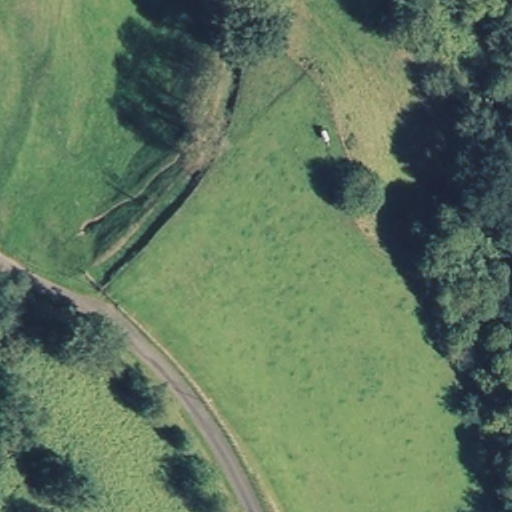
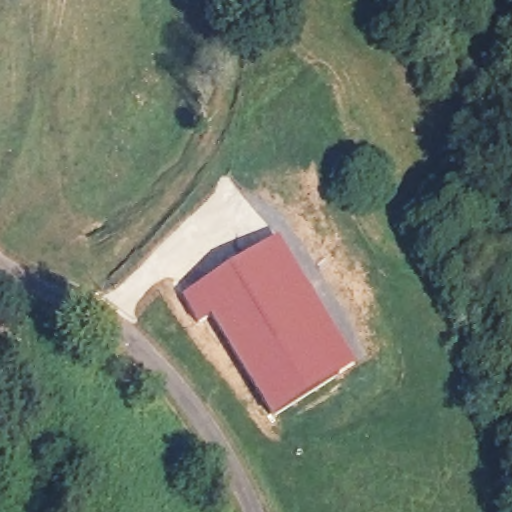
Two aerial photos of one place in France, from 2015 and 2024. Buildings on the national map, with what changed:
new [(355,367),(272,420),(210,316),(198,323),(181,296),(277,237),(355,367)]

